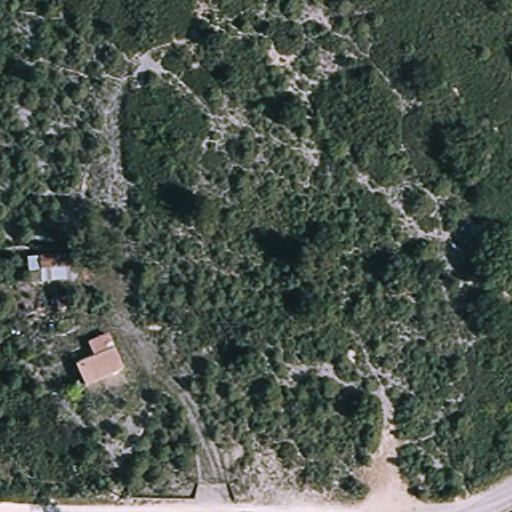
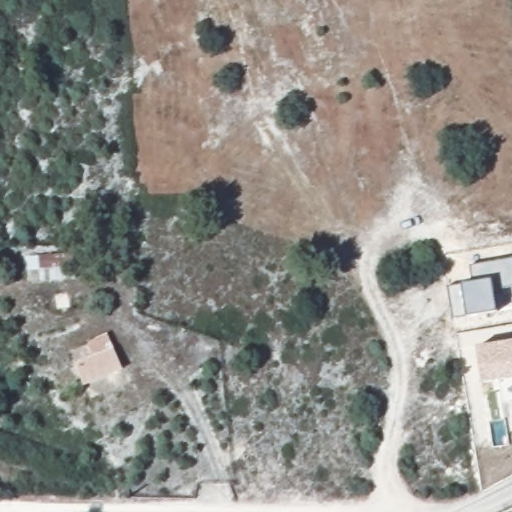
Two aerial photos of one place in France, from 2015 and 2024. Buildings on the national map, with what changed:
unchanged [(75,249),(77,277),(28,285),(25,256),(75,249)]
new [(469,316),(453,318),(448,287),(462,285),(472,284),(470,266),(512,259),(512,287),(495,290),(499,311),(469,316)]
unchanged [(104,332),(117,367),(77,383),(67,361),(89,352),(84,338),(104,332)]
new [(499,381),(484,383),(478,346),(512,341),(512,403),(503,405),(499,381)]

